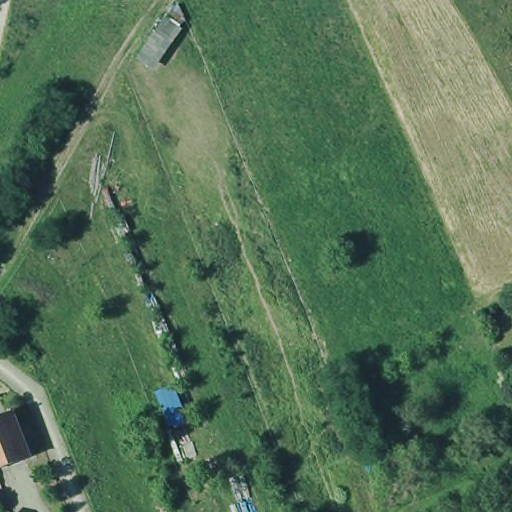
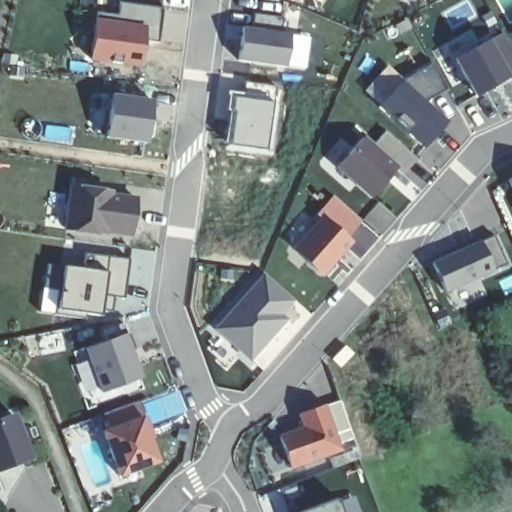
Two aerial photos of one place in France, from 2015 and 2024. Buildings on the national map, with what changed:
new [(165,5),(159,42),(147,41),(144,67),(91,63),(94,36),(95,21),(97,11),(120,14),(121,0),(165,5)]
new [(291,32),(288,66),(238,60),(241,29),(254,30),(255,15),(283,19),(281,32),(291,32)]
new [(512,53),(512,119),(471,139),(456,107),(475,99),(455,58),(502,34),(512,53)]
new [(448,89),(424,101),(446,123),(425,149),(378,110),(403,80),(435,64),(448,89)]
new [(226,114),(223,114),(225,91),(271,100),(265,153),(222,146),(226,114)]
new [(153,100),(147,144),(105,140),(110,92),(153,100)]
new [(418,159),(403,178),(396,170),(372,199),(338,166),(365,135),(373,144),(385,130),(418,159)]
new [(512,189),(508,180),(512,178),(512,189)]
new [(140,191),(135,238),(66,230),(71,185),(140,191)]
new [(362,220),(350,235),(354,240),(322,279),(288,250),(336,196),(362,220)]
new [(496,236),(510,267),(445,294),(433,263),(496,236)]
new [(46,262),(80,267),(82,251),(131,259),(124,297),(105,295),(102,316),(37,311),(46,262)]
new [(263,270),(297,301),(285,312),(292,318),(250,362),(211,327),(263,270)]
new [(128,336),(145,378),(103,393),(87,350),(128,336)]
new [(140,400),(145,413),(104,427),(100,413),(140,400)]
new [(340,401),(354,440),(340,444),(342,451),(291,467),(280,436),(303,428),(298,415),(340,401)]
unchanged [(17,405),(34,447),(0,461),(0,412),(17,405)]
new [(161,463),(120,477),(105,431),(146,417),(161,463)]
new [(353,493),(360,512),(296,512),(353,493)]
unchanged [(16,506),(23,512),(11,512),(16,506)]

